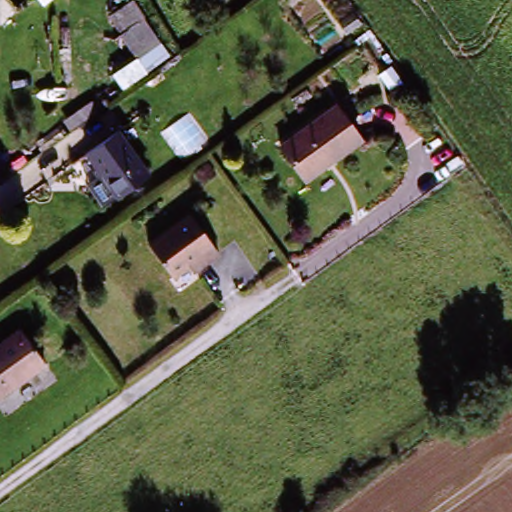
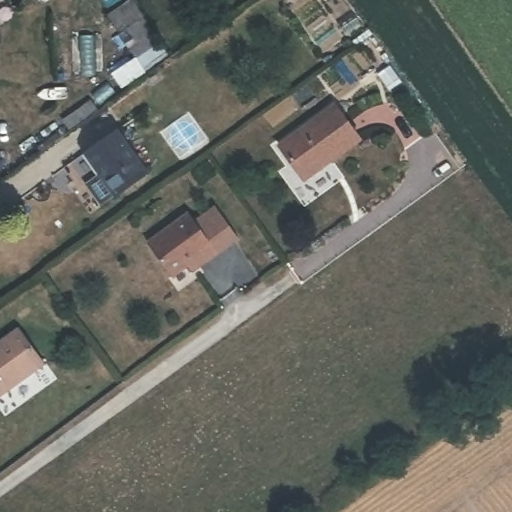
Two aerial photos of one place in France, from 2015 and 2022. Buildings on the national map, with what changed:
unchanged [(303,182),(277,146),(334,106),(360,142),(303,182)]
unchanged [(86,154),(119,132),(147,172),(115,195),(86,154)]
unchanged [(182,263),(166,276),(142,244),(185,212),(214,252),(187,270),(182,263)]
unchanged [(46,365),(0,398),(0,346),(21,331),(46,365)]

